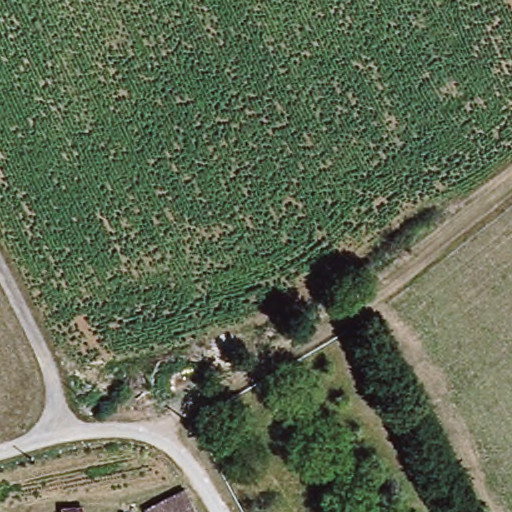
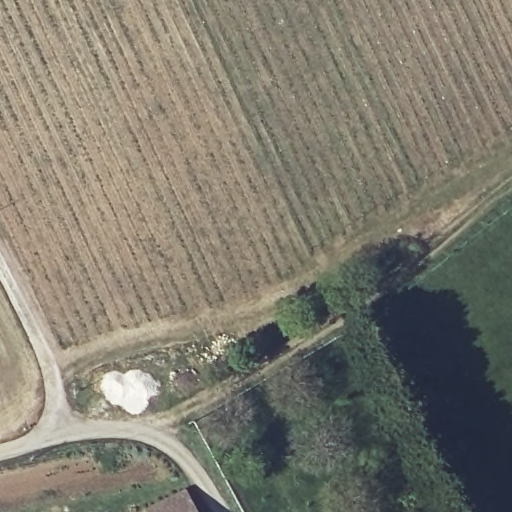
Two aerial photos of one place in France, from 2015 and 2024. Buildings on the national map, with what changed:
unchanged [(186,494),(195,512),(150,512),(186,494)]

